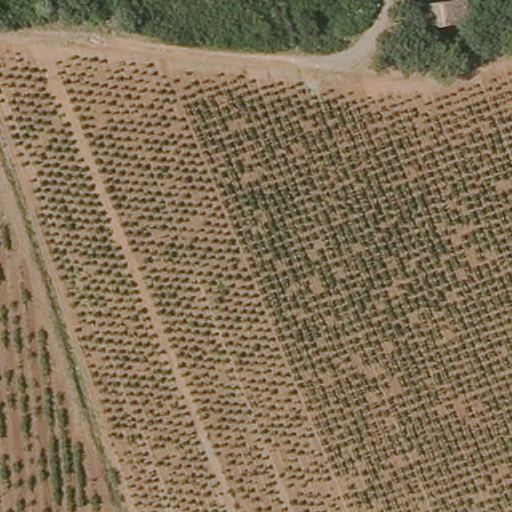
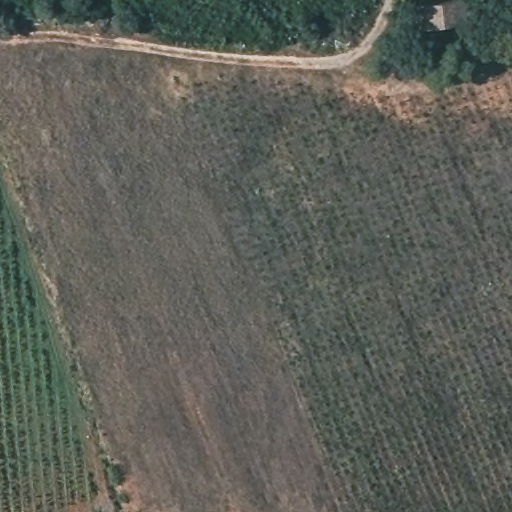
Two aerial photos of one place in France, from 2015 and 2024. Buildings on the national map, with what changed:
unchanged [(460,22),(412,31),(408,12),(457,2),(460,22)]

